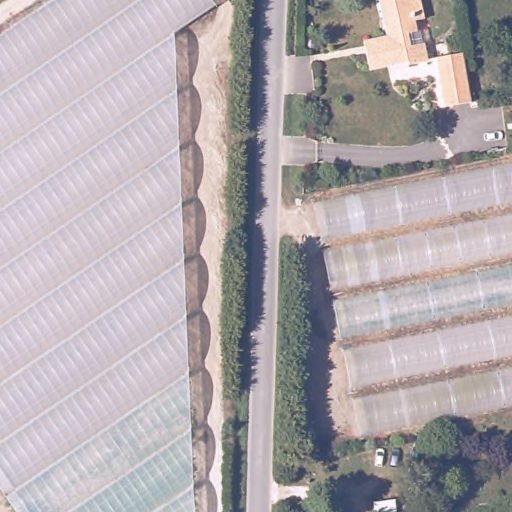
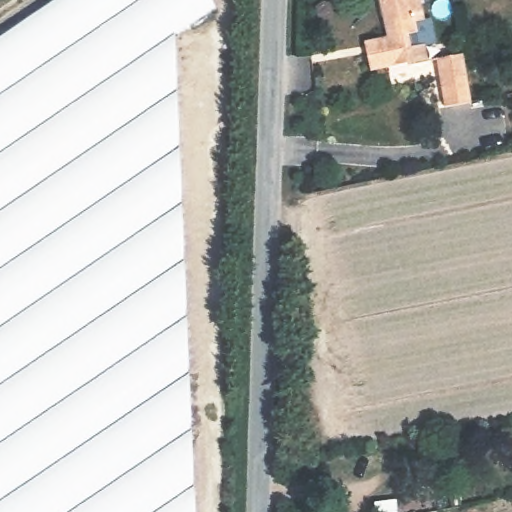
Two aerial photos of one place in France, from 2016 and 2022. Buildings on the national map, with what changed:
unchanged [(209,0),(215,10),(172,36),(193,512),(17,512),(0,487),(0,38),(57,0),(209,0)]
unchanged [(422,22),(423,31),(419,32),(422,47),(431,45),(435,62),(416,66),(415,63),(377,72),(373,54),(380,52),(377,41),(394,37),(386,0),(427,0),(432,19),(422,22)]
unchanged [(478,102),(447,108),(440,61),(470,56),(478,102)]
demolished [(512,404),(355,433),(311,199),(512,159),(512,404)]
new [(17,512),(0,512),(0,487),(17,512)]

